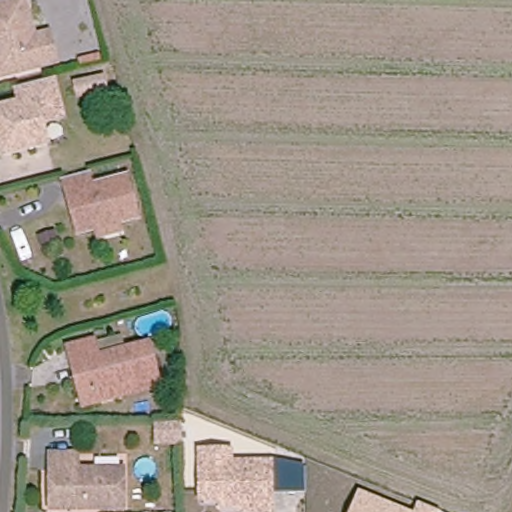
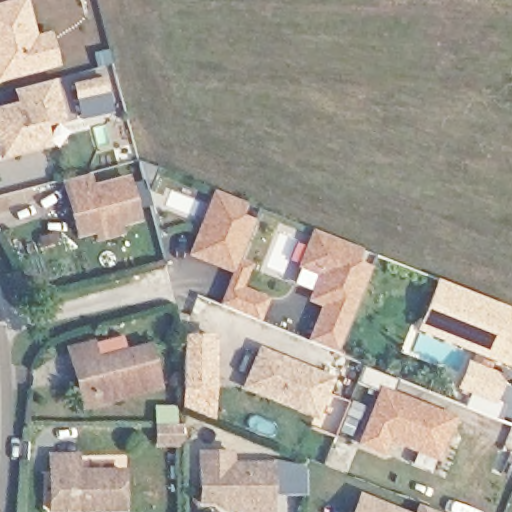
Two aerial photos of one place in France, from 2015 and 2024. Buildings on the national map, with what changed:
unchanged [(39,72),(0,83),(0,14),(22,7),(32,43),(45,40),(53,67),(39,72)]
unchanged [(70,75),(103,69),(108,92),(73,99),(70,75)]
unchanged [(59,101),(37,107),(48,150),(3,161),(0,149),(0,116),(23,110),(19,94),(54,85),(59,101)]
unchanged [(95,245),(92,228),(75,232),(66,195),(63,179),(86,173),(89,190),(123,182),(131,219),(117,222),(121,238),(95,245)]
new [(208,255),(188,248),(190,243),(213,184),(241,195),(235,209),(252,215),(235,257),(243,260),(236,277),(229,275),(233,265),(208,255)]
new [(309,293),(319,267),(299,259),(305,241),(313,223),(359,241),(354,255),(371,261),(352,309),(348,319),(337,346),(309,335),(319,308),(323,298),(309,293)]
new [(439,271),(510,298),(504,314),(512,317),(512,355),(493,348),(490,347),(498,327),(428,300),(439,271)]
new [(227,280),(262,294),(254,313),(219,299),(227,280)]
new [(468,381),(461,378),(478,336),(422,315),(428,300),(498,327),(490,347),(493,348),(487,363),(503,370),(494,391),(479,385),(478,390),(468,387),(470,382),(468,381)]
new [(210,331),(210,382),(181,382),(180,331),(210,331)]
new [(259,344),(331,373),(317,410),(260,387),(244,381),(249,368),(259,344)]
unchanged [(70,368),(68,355),(96,347),(100,357),(144,345),(157,388),(93,406),(83,409),(70,368)]
new [(389,431),(383,446),(361,437),(380,385),(357,376),(364,359),(398,373),(393,388),(419,398),(427,400),(454,410),(438,450),(433,465),(413,457),(419,443),(389,431)]
unchanged [(151,419),(182,419),(181,445),(149,444),(151,419)]
unchanged [(234,459),(274,458),(305,467),(305,493),(275,493),(275,512),(240,512),(239,510),(215,510),(216,502),(197,502),(197,450),(234,449),(234,459)]
unchanged [(50,512),(50,463),(77,462),(78,475),(123,475),(123,512),(50,512)]
unchanged [(349,512),(358,490),(412,512),(349,512)]
unchanged [(441,512),(414,512),(417,501),(441,512)]

